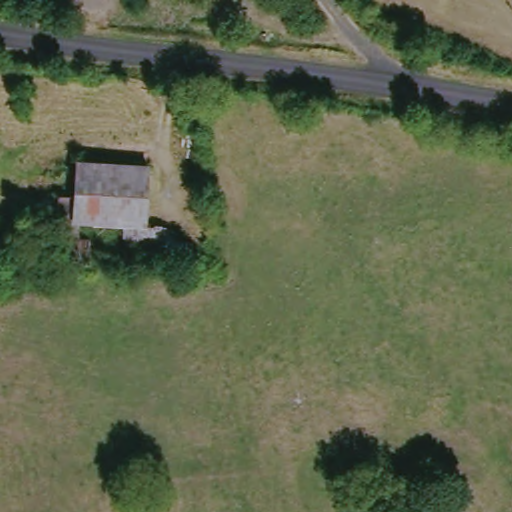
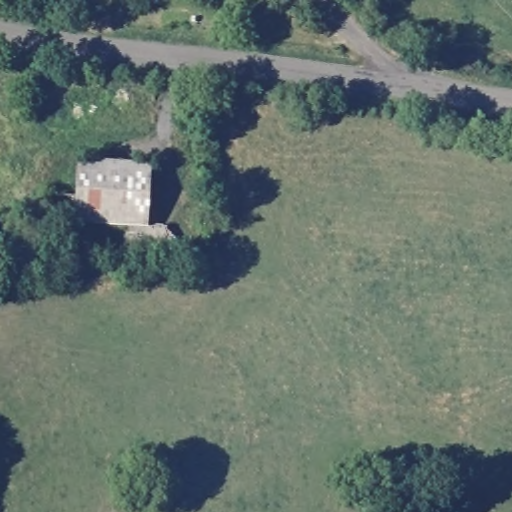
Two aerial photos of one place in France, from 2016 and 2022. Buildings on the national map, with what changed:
unchanged [(150,167),(140,224),(162,224),(172,239),(180,240),(180,251),(152,251),(150,262),(118,260),(115,227),(77,224),(80,234),(80,261),(59,262),(53,235),(51,194),(66,190),(72,159),(150,167)]

